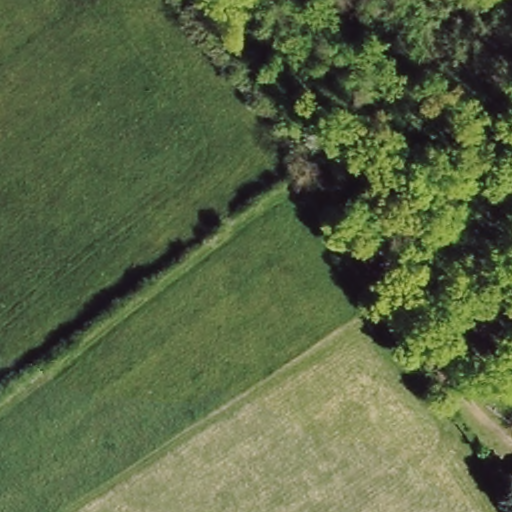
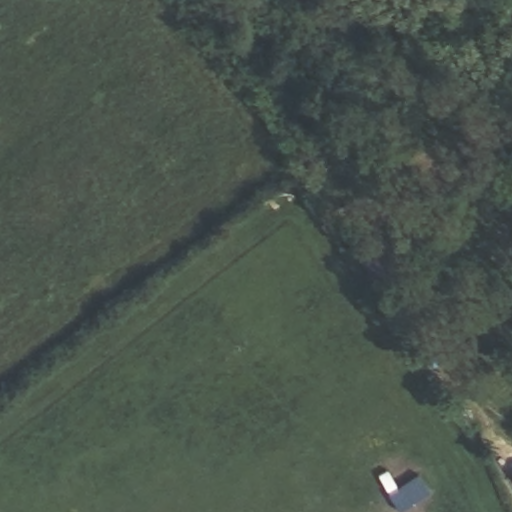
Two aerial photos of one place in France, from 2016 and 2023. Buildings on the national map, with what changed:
unchanged [(510,473),(512,472),(512,476),(510,473)]

